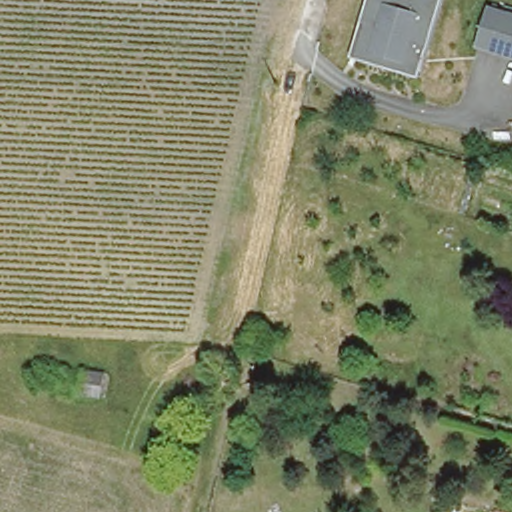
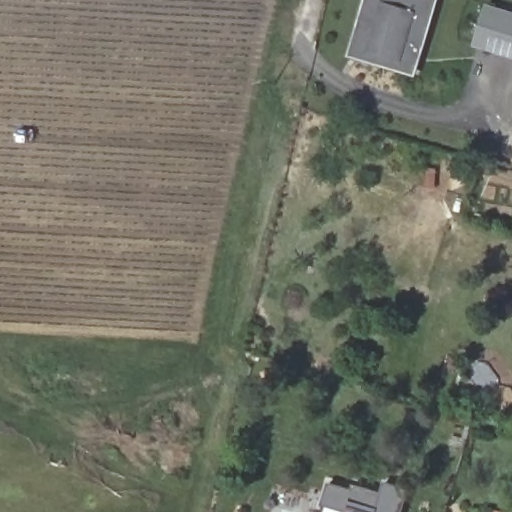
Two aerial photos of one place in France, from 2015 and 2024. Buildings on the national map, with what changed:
unchanged [(366,0),(440,0),(420,76),(349,58),(366,0)]
unchanged [(490,9),(512,16),(512,57),(478,47),(490,9)]
new [(326,507),(322,505),(328,482),(352,489),(354,483),(381,492),(385,482),(411,490),(404,512),(325,512),(326,507)]

